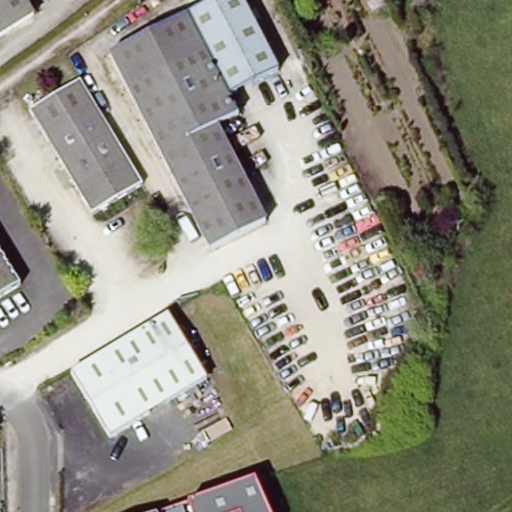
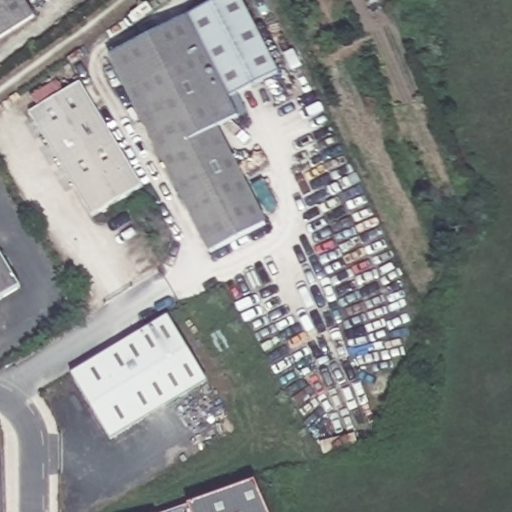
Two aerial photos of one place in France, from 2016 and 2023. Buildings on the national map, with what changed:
unchanged [(34,15),(0,37),(0,0),(25,0),(34,15)]
unchanged [(207,0),(240,0),(274,67),(225,92),(207,57),(184,11),(207,0)]
unchanged [(207,57),(225,92),(235,112),(212,124),(260,220),(206,247),(106,51),(184,11),(207,57)]
unchanged [(141,183),(90,215),(27,110),(78,78),(141,183)]
unchanged [(23,286),(0,300),(0,247),(23,286)]
unchanged [(171,322),(209,386),(113,442),(75,380),(171,322)]
unchanged [(267,512),(177,512),(255,483),(267,512)]

